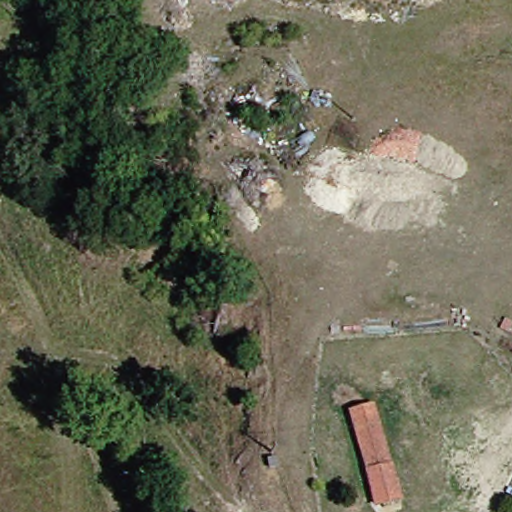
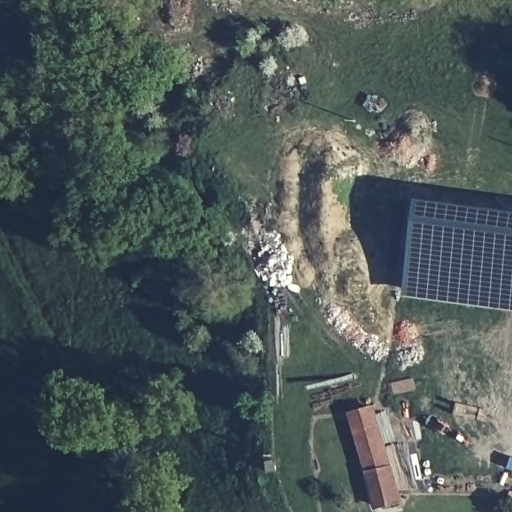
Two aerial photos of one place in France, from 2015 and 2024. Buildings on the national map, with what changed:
new [(419,197),(512,210),(512,312),(404,297),(419,197)]
unchanged [(363,439),(362,433),(356,407),(387,401),(407,495),(376,501),(367,457),(363,439)]
unchanged [(276,481),(267,480),(268,467),(277,468),(276,481)]

